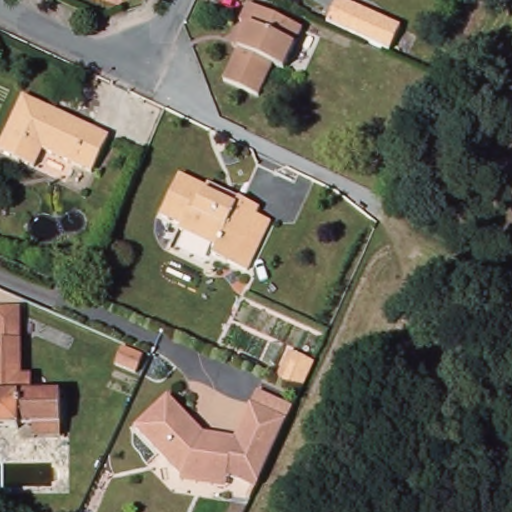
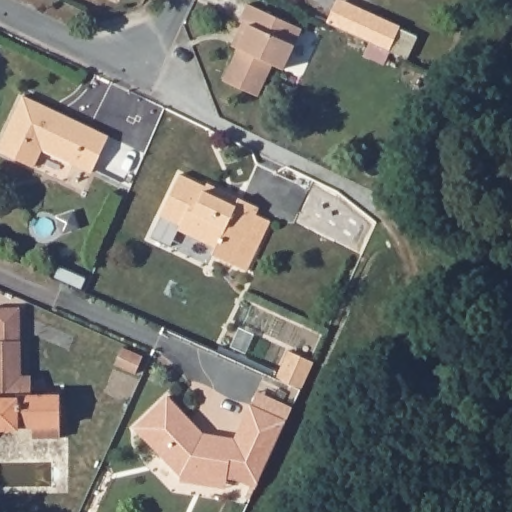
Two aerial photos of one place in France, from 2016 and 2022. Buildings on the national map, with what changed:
unchanged [(115,2),(111,0),(116,0),(115,2)]
unchanged [(337,0),(344,0),(401,26),(391,51),(327,24),(337,0)]
unchanged [(247,7),(302,31),(284,71),(273,66),(259,99),(224,83),(238,51),(231,48),(241,25),(239,24),(247,7)]
unchanged [(88,176),(37,152),(29,170),(0,155),(0,142),(20,100),(105,140),(88,176)]
unchanged [(242,275),(228,269),(209,260),(213,250),(177,234),(179,229),(157,218),(176,179),(202,192),(205,187),(236,201),(256,211),(240,243),(254,250),(242,275)]
unchanged [(17,430),(17,432),(0,432),(0,311),(23,311),(23,326),(22,380),(30,380),(30,398),(46,399),(46,394),(60,394),(59,430),(54,430),(54,442),(32,442),(32,430),(17,430)]
unchanged [(250,492),(232,483),(221,481),(220,487),(220,492),(174,485),(175,479),(130,430),(163,400),(198,437),(230,443),(246,410),(281,426),(255,482),(252,487),(252,488),(250,492)]

